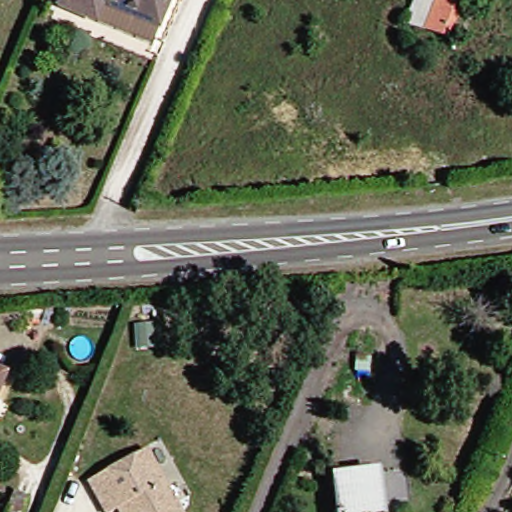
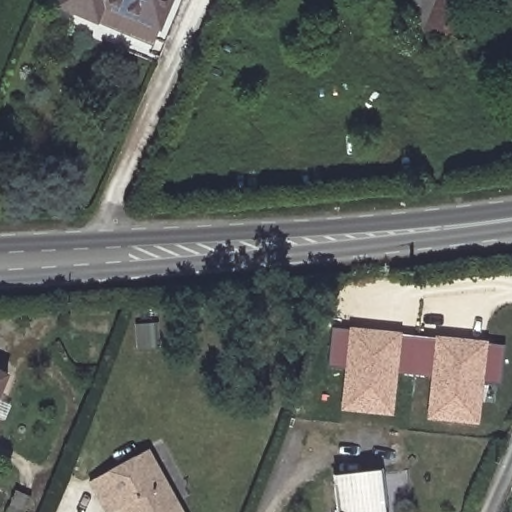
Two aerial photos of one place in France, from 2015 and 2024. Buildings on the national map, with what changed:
unchanged [(62,0),(174,0),(155,45),(59,8),(62,0)]
unchanged [(418,0),(458,0),(463,2),(447,41),(407,25),(418,0)]
new [(345,368),(328,366),(332,328),(348,329),(350,326),(401,331),(401,334),(435,338),(436,335),(488,340),(488,343),(505,345),(500,384),(485,382),(479,424),(427,419),(431,376),(398,373),(393,415),(341,410),(345,368)]
unchanged [(0,395),(0,371),(9,375),(0,395)]
unchanged [(117,512),(106,512),(91,483),(149,451),(183,512),(120,512),(120,510),(117,512)]
unchanged [(375,471),(382,470),(386,512),(337,512),(333,476),(375,471)]
unchanged [(6,512),(17,491),(30,498),(22,512),(6,512)]

